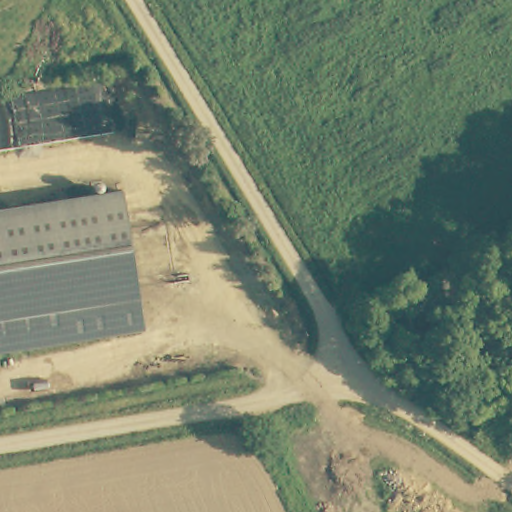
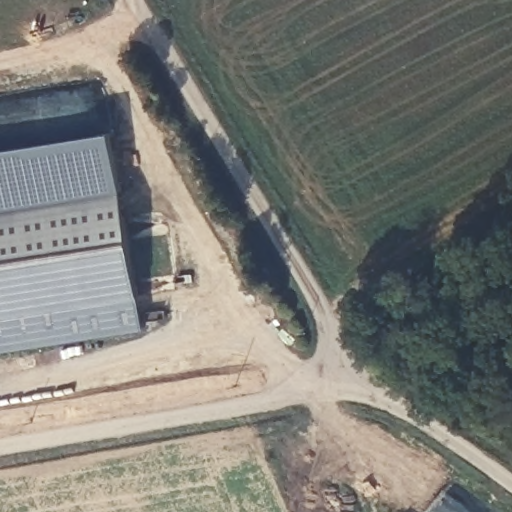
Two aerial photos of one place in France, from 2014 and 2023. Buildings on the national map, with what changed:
new [(0,153),(113,136),(121,195),(0,215),(0,153)]
unchanged [(145,332),(0,357),(0,215),(121,195),(145,332)]

